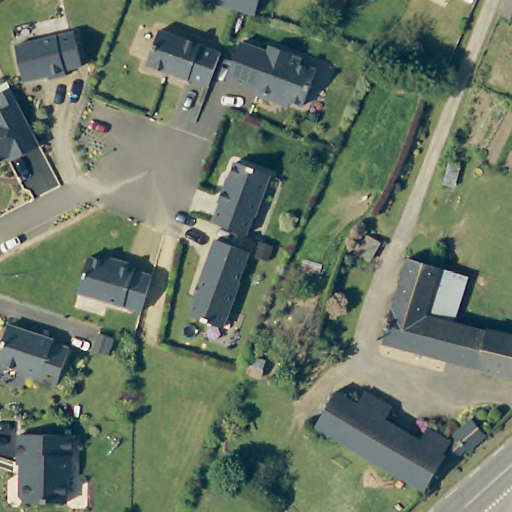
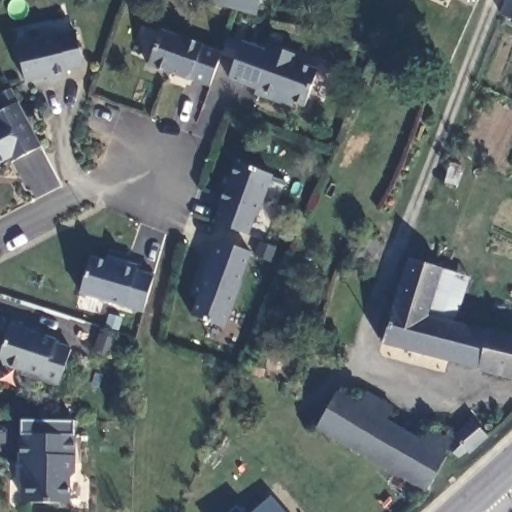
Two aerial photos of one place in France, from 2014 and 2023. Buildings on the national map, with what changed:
unchanged [(233,12),(201,0),(255,0),(249,16),(233,12)]
unchanged [(478,3),(470,0),(479,0),(478,3)]
unchanged [(499,13),(505,0),(512,0),(512,18),(499,13)]
unchanged [(210,82),(190,76),(190,77),(149,62),(162,27),(204,42),(203,42),(223,49),(210,82)]
unchanged [(20,79),(14,42),(72,31),(78,65),(60,68),(61,74),(47,77),(46,74),(20,79)]
unchanged [(273,97),(252,90),(253,85),(225,75),(238,39),(266,49),(269,42),(290,50),(288,57),(314,67),(301,102),(288,97),(287,102),(273,97)]
unchanged [(0,158),(0,109),(14,102),(17,106),(35,141),(36,144),(6,161),(3,156),(0,158)]
unchanged [(217,202),(226,176),(227,177),(233,161),(268,174),(253,215),(252,214),(244,234),(214,222),(210,221),(218,202),(217,202)]
unchanged [(358,257),(349,252),(359,234),(364,237),(374,242),(371,247),(365,260),(358,257)]
unchanged [(194,285),(212,239),(246,252),(235,282),(237,282),(219,327),(186,315),(197,287),(194,285)]
unchanged [(141,311),(79,293),(89,257),(118,265),(119,261),(136,265),(134,271),(152,275),(141,311)]
unchanged [(435,268),(423,315),(459,325),(483,331),(484,327),(512,335),(512,379),(379,345),(404,260),(435,268)]
unchanged [(469,276),(459,325),(423,315),(435,268),(469,276)]
unchanged [(13,321),(58,335),(56,338),(73,346),(61,382),(23,370),(24,367),(6,360),(3,352),(13,321)]
unchanged [(334,388),(356,401),(364,390),(392,406),(386,417),(421,436),(427,426),(449,439),(443,450),(447,452),(425,490),(314,425),(334,388)]
unchanged [(465,445),(460,450),(454,450),(451,444),(452,441),(457,435),(454,432),(472,419),(486,435),(468,449),(465,445)]
unchanged [(18,475),(21,470),(24,465),(24,458),(16,458),(16,427),(71,429),(70,469),(65,470),(65,497),(20,496),(18,491),(18,475)]
new [(283,512),(252,512),(270,496),(283,512)]
new [(244,512),(226,512),(234,504),(244,512)]

